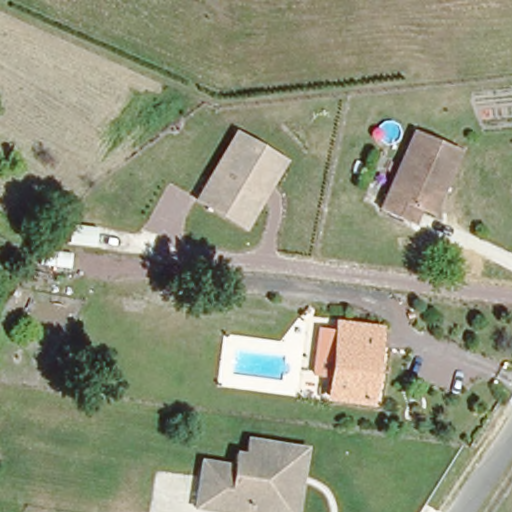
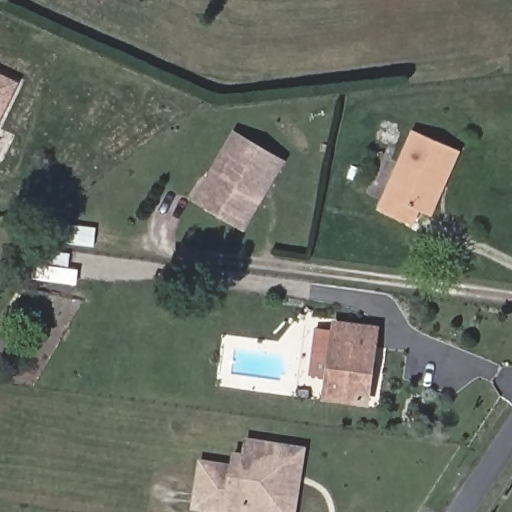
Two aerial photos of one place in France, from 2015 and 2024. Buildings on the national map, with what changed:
new [(0,120),(0,72),(20,81),(0,120)]
unchanged [(243,234),(193,201),(236,131),(286,161),(243,234)]
unchanged [(416,211),(409,226),(376,210),(409,131),(447,149),(455,152),(437,194),(428,215),(416,211)]
unchanged [(66,272),(34,268),(36,244),(68,252),(66,272)]
unchanged [(336,328),(376,336),(366,405),(326,400),(336,328)]
unchanged [(298,512),(199,512),(192,511),(199,460),(232,463),(234,452),(244,453),(246,439),(306,448),(298,512)]

